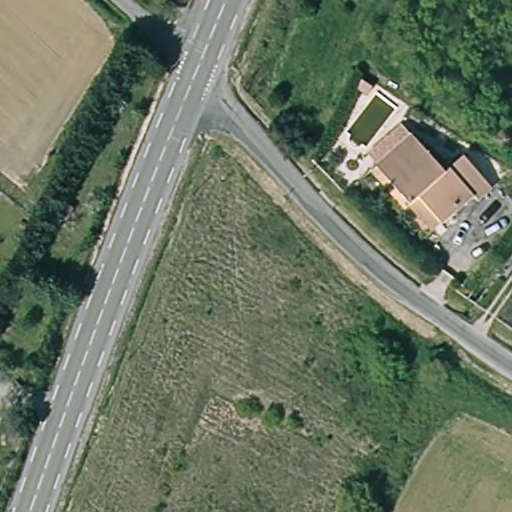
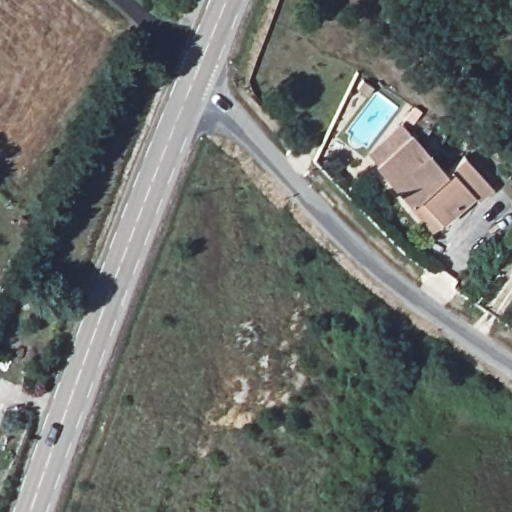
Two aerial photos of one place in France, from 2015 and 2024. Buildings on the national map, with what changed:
unchanged [(418,199),(407,206),(372,167),(414,133),(444,167),(462,155),(465,158),(423,206),(418,199)]
unchanged [(465,158),(494,190),(472,207),(464,200),(438,225),(423,206),(465,158)]

